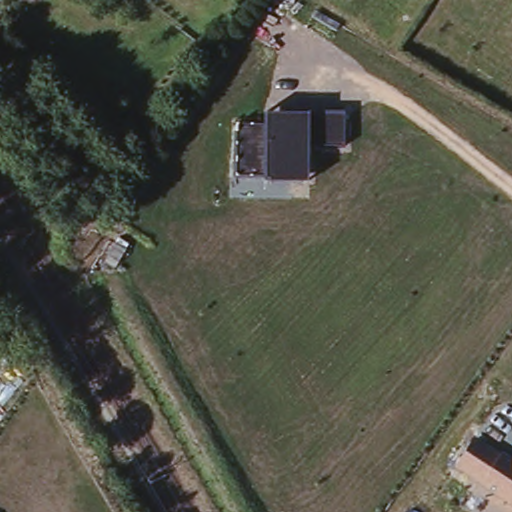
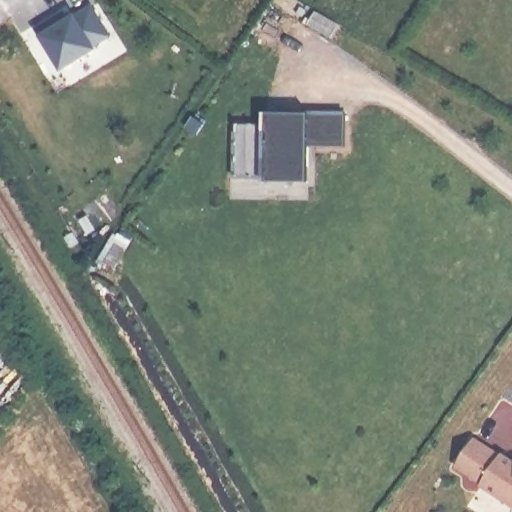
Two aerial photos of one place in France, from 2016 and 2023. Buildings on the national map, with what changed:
new [(79,5),(83,11),(98,2),(119,40),(62,69),(37,27),(79,5)]
unchanged [(346,148),(309,149),(309,182),(264,180),(237,177),(239,125),(264,127),(264,114),(310,113),(345,113),(346,148)]
unchanged [(476,435),(512,459),(512,507),(454,467),(476,435)]

